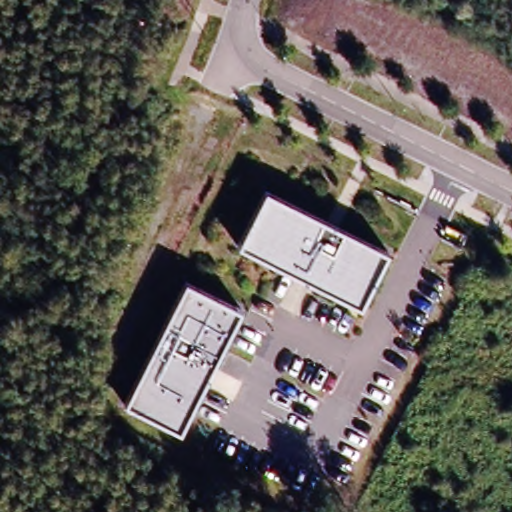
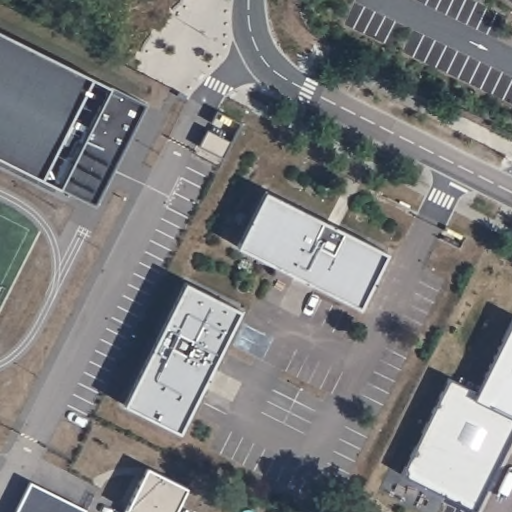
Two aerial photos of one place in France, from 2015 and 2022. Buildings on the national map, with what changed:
new [(96,194),(0,148),(0,26),(142,92),(96,194)]
new [(220,110),(241,121),(223,157),(201,146),(220,110)]
unchanged [(387,252),(360,307),(237,246),(265,191),(387,252)]
unchanged [(180,431),(125,403),(185,282),(240,310),(180,431)]
new [(475,507),(402,472),(450,378),(477,393),(512,323),(512,434),(475,507)]
new [(142,475),(145,476),(151,463),(190,482),(175,512),(124,512),(125,508),(142,475)]
new [(87,508),(85,512),(15,512),(30,482),(87,508)]

